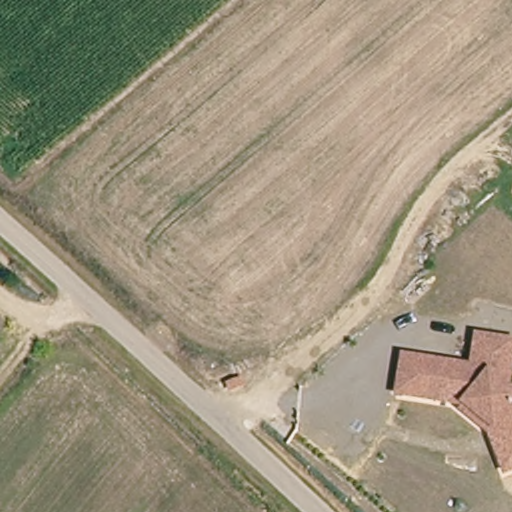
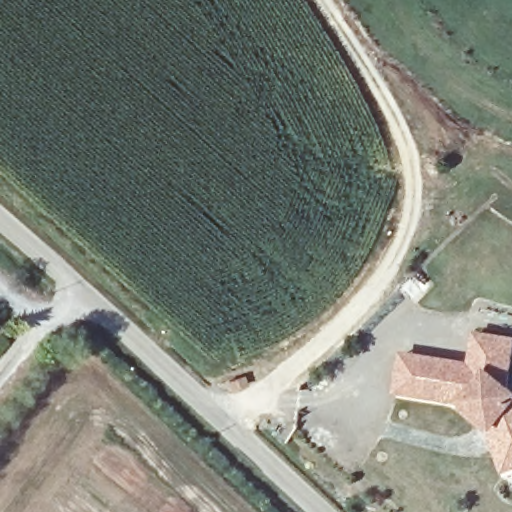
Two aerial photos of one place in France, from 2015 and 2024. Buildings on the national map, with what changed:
unchanged [(477,336),(512,340),(512,368),(510,387),(512,388),(512,452),(510,453),(498,430),(466,405),(418,400),(400,397),(405,359),(422,362),(473,367),(477,336)]
unchanged [(495,433),(463,409),(466,405),(498,430),(510,453),(512,452),(512,469),(495,433)]

